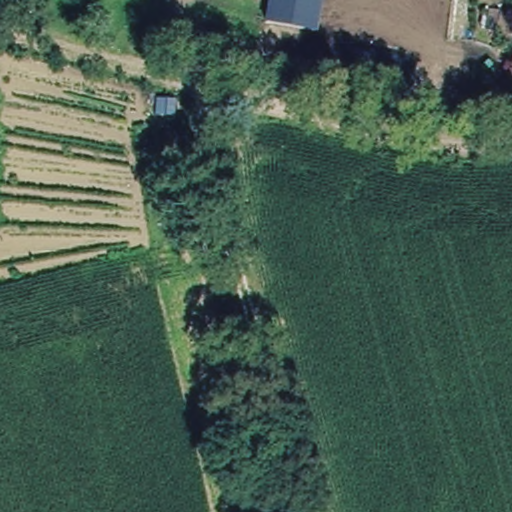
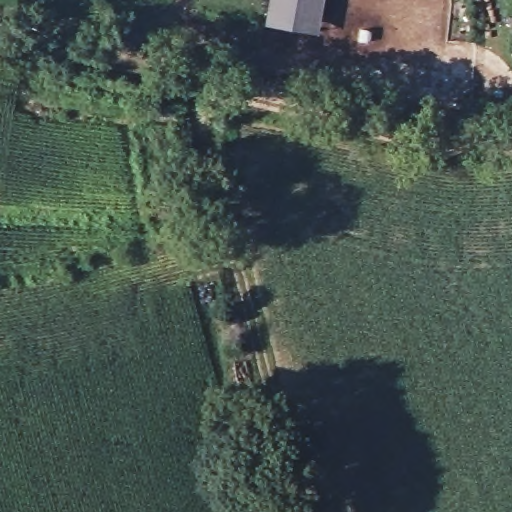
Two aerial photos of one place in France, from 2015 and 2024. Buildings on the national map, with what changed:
unchanged [(325,0),(319,32),(267,23),(271,0),(325,0)]

